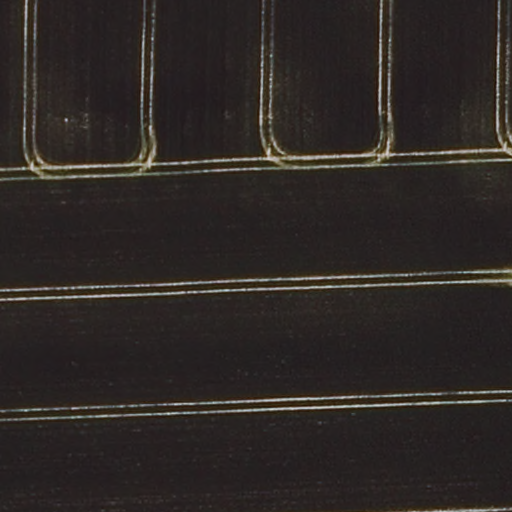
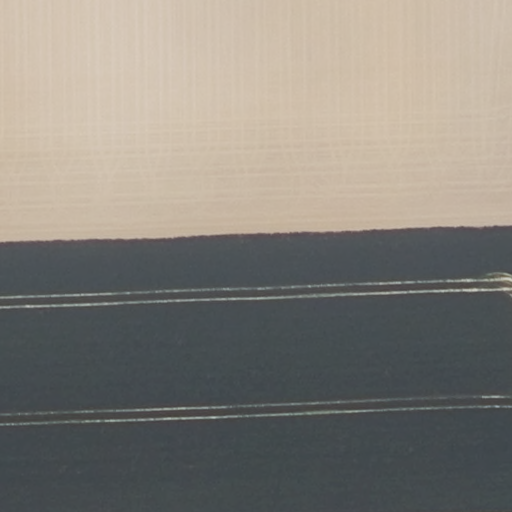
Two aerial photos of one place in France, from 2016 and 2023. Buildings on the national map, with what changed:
[]

